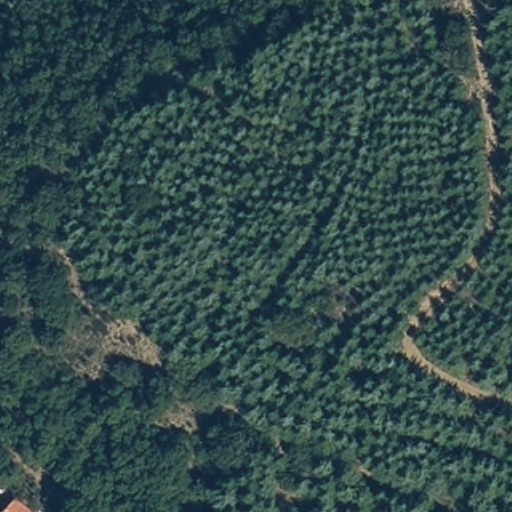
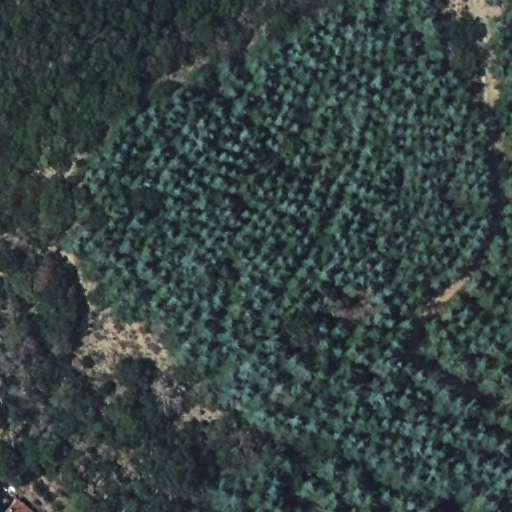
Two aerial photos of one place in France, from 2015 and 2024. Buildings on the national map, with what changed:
unchanged [(31,512),(3,512),(14,501),(31,512)]

